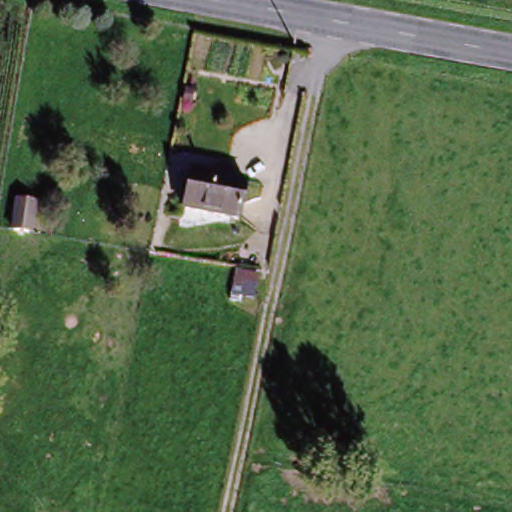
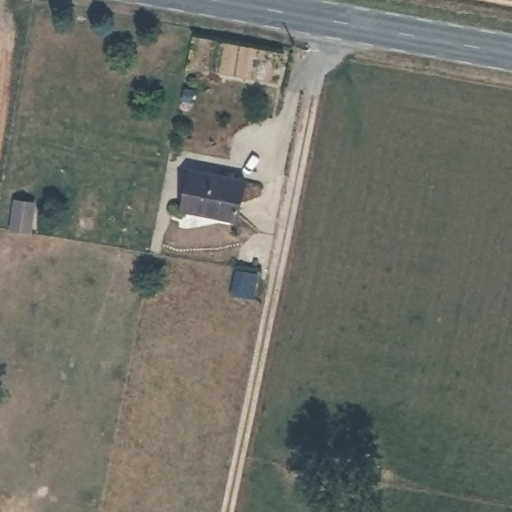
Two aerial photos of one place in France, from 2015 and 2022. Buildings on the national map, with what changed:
unchanged [(240,227),(187,219),(194,174),(248,183),(240,227)]

